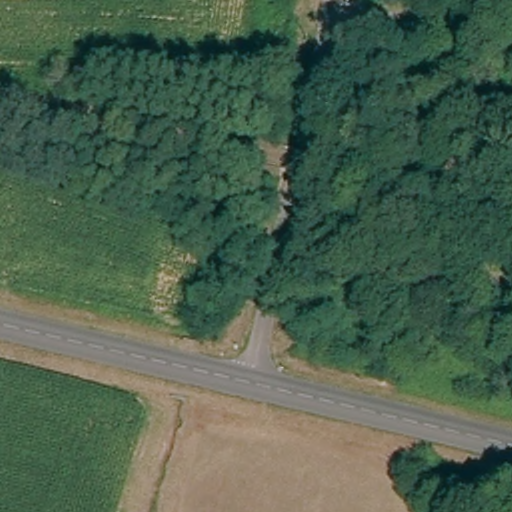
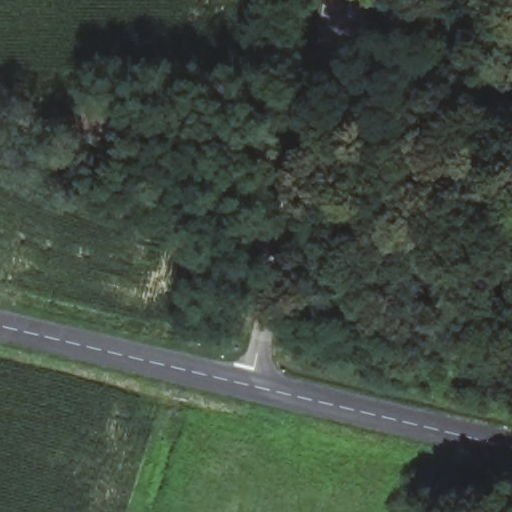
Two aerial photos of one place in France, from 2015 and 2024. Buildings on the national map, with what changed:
[]

